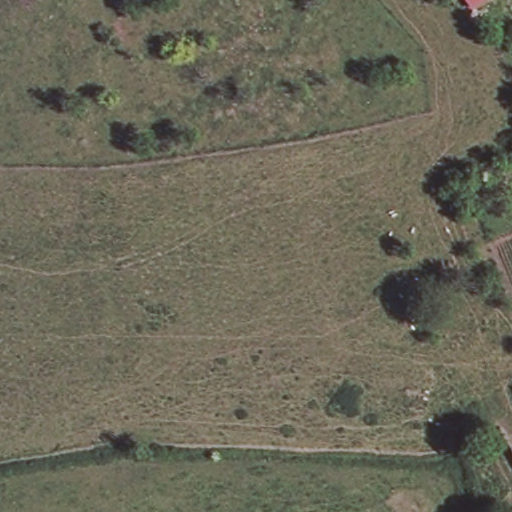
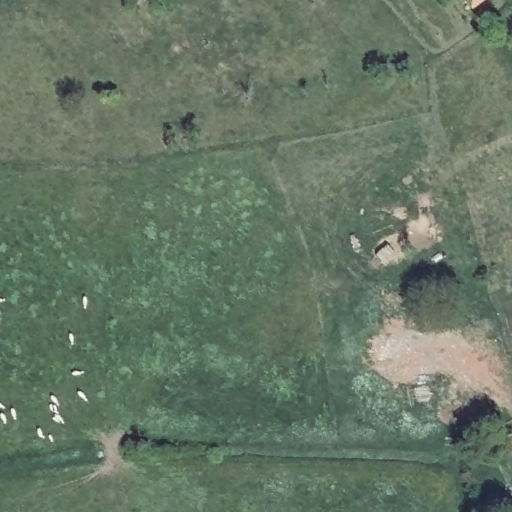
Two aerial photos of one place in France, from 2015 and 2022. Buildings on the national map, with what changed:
unchanged [(472,0),(479,0),(474,4),(472,0)]

